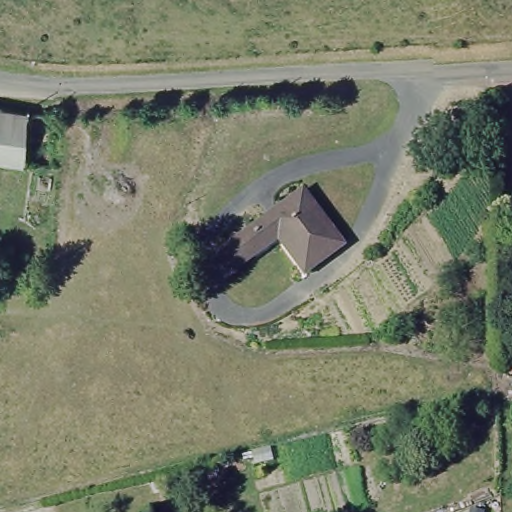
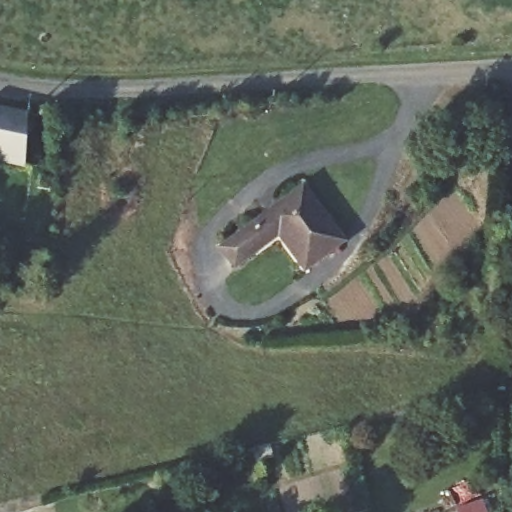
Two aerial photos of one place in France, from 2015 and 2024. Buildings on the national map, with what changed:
unchanged [(35,114),(26,169),(0,165),(0,109),(35,114)]
unchanged [(304,187),(339,236),(299,264),(277,232),(232,265),(219,247),(304,187)]
unchanged [(512,270),(507,270),(507,260),(512,260),(512,270)]

